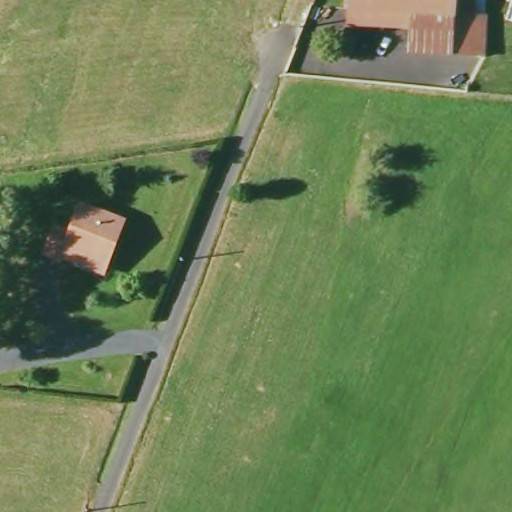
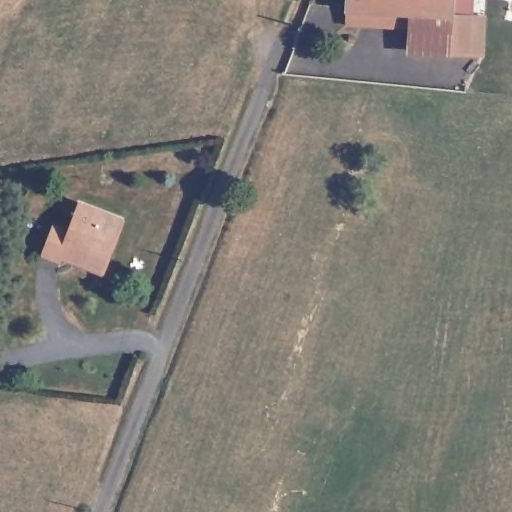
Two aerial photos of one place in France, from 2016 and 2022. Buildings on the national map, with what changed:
unchanged [(408,59),(412,31),(342,29),(345,12),(346,0),(454,0),(452,18),(485,18),(481,57),(450,60),(408,59)]
unchanged [(82,263),(63,256),(61,260),(43,252),(55,225),(71,230),(82,203),(121,219),(105,260),(102,270),(82,263)]

